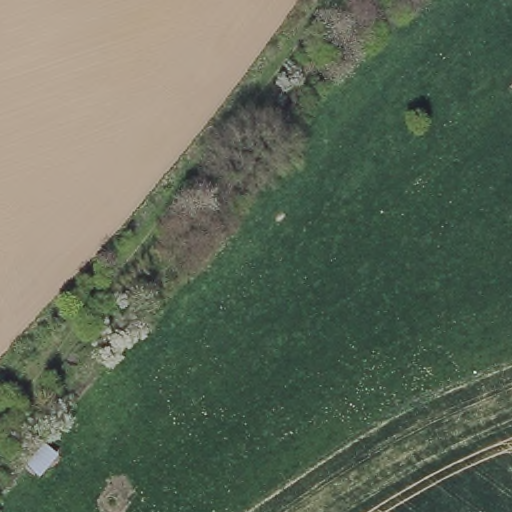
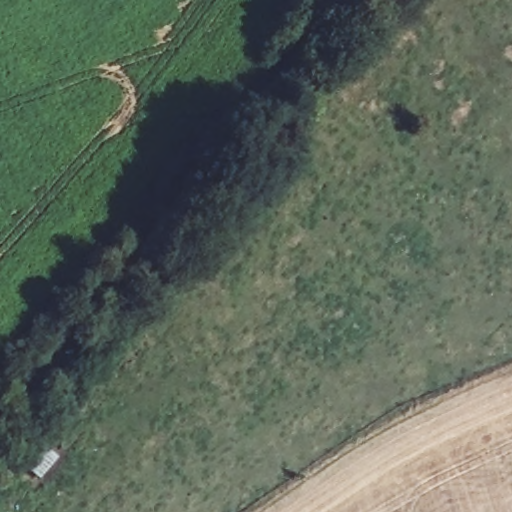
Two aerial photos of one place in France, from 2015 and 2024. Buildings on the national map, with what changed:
unchanged [(26,470),(47,442),(62,456),(45,481),(26,470)]

